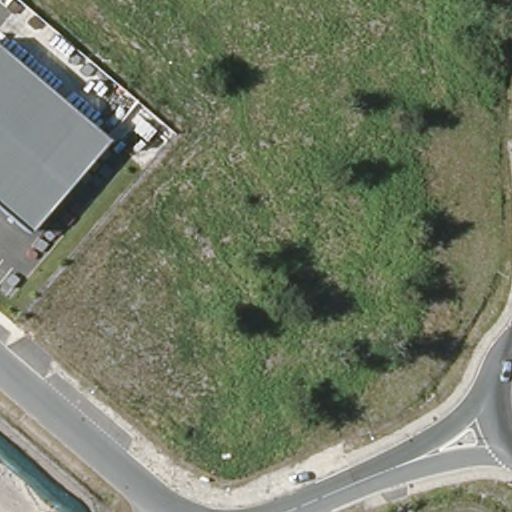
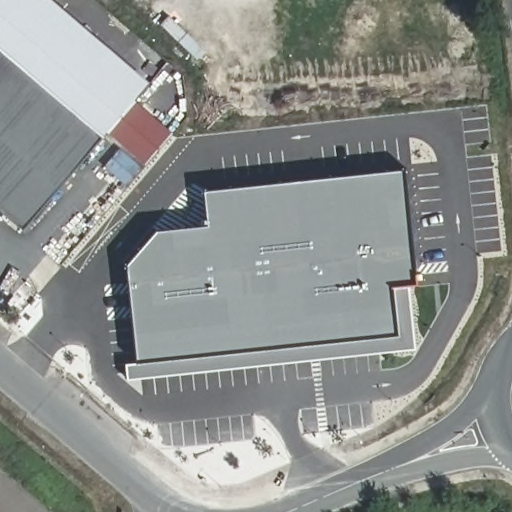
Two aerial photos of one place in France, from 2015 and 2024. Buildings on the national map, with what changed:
new [(139,100),(175,134),(147,167),(0,40),(0,0),(56,0),(151,81),(139,100)]
unchanged [(27,229),(0,206),(0,46),(105,137),(27,229)]
new [(129,381),(127,365),(140,364),(128,267),(159,232),(211,227),(207,192),(408,171),(419,285),(410,286),(417,350),(129,381)]

